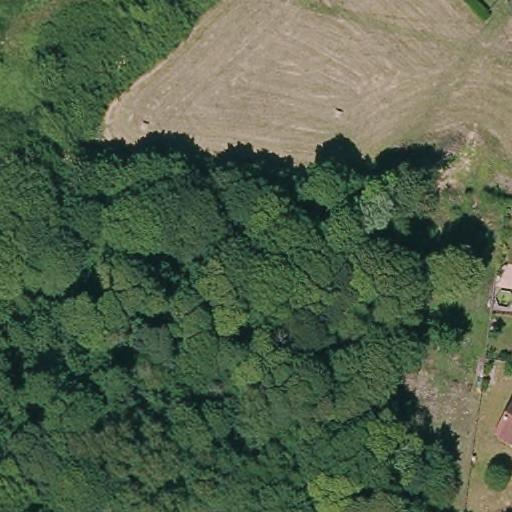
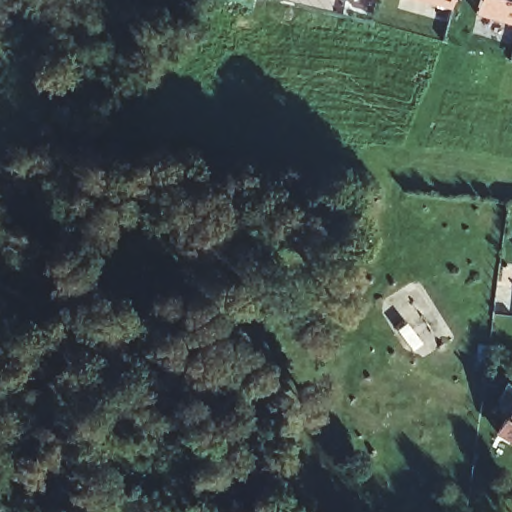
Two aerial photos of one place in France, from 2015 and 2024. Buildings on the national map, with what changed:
new [(449,12),(408,0),(452,0),(449,12)]
new [(472,18),(477,0),(512,0),(512,28),(472,18)]
unchanged [(512,402),(512,441),(495,431),(512,402)]

